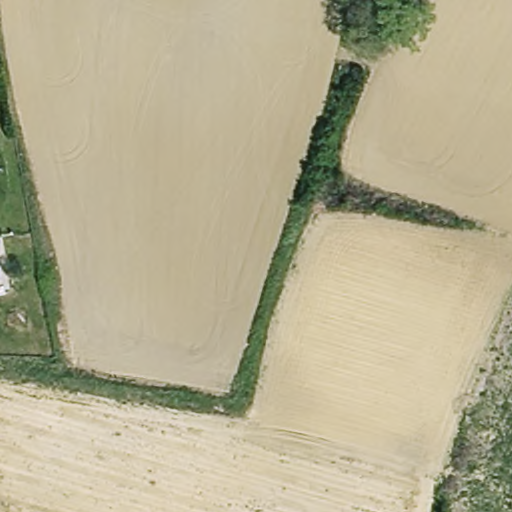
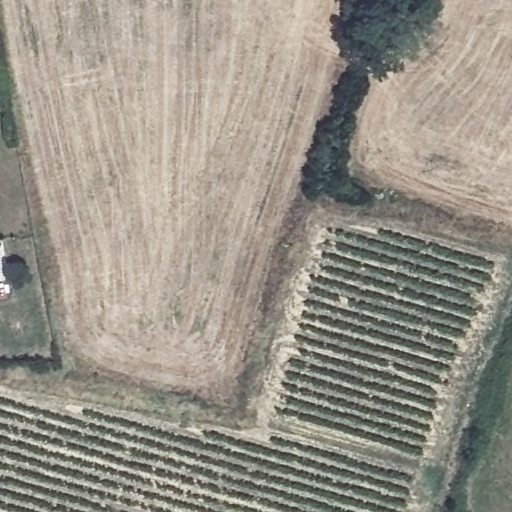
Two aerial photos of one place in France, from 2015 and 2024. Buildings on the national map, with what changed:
[]

